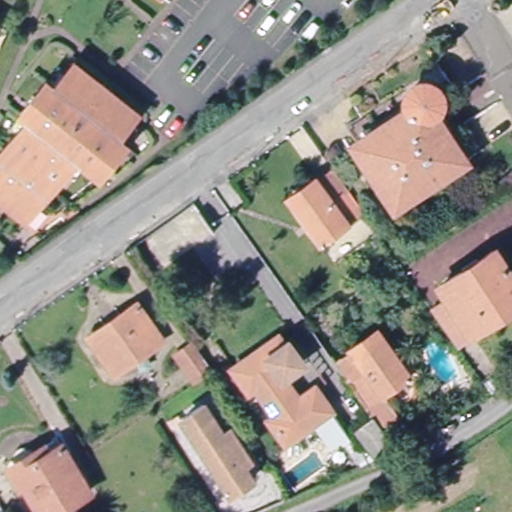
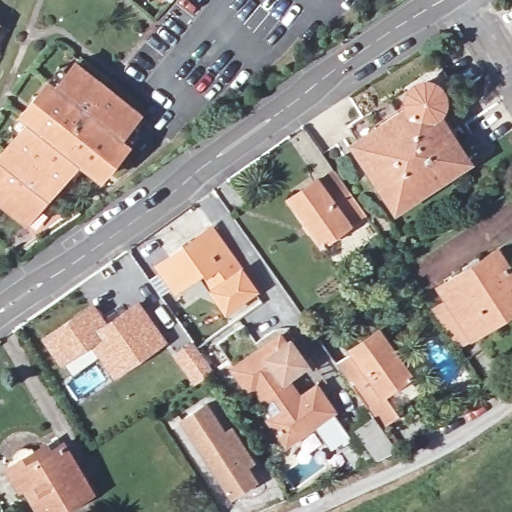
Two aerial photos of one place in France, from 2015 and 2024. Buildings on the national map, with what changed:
unchanged [(31,218),(0,194),(0,167),(23,137),(13,130),(60,69),(70,77),(79,66),(144,116),(138,125),(148,133),(109,182),(99,174),(84,163),(71,179),(65,174),(31,218)]
unchanged [(356,155),(363,151),(351,132),(364,124),(376,142),(414,118),(409,109),(409,102),(413,94),(417,90),(424,88),(436,91),(443,97),(444,105),(444,110),(442,115),(458,141),(449,146),(464,172),(401,213),(393,199),(386,203),(356,155)]
unchanged [(285,216),(279,207),(307,188),(309,192),(326,180),(358,225),(314,256),(285,216)]
new [(241,264),(259,290),(224,313),(208,290),(199,279),(175,296),(154,267),(211,225),(241,264)]
unchanged [(454,303),(446,291),(498,258),(512,281),(512,317),(479,338),(481,340),(460,354),(458,351),(434,317),(454,303)]
new [(108,329),(89,343),(90,345),(60,367),(40,338),(93,302),(108,329)]
unchanged [(89,343),(134,311),(159,347),(113,379),(89,343)]
unchanged [(363,409),(348,386),(331,362),(348,352),(377,333),(380,338),(408,380),(363,409)]
unchanged [(299,368),(279,382),(296,406),(313,395),(327,415),(279,447),(265,427),(272,423),(250,393),(244,397),(229,376),(260,355),(277,343),(281,350),(285,347),(299,368)]
unchanged [(196,385),(175,356),(193,344),(214,374),(205,379),(196,385)]
unchanged [(374,461),(354,431),(371,420),(394,453),(374,461)]
unchanged [(227,497),(187,434),(207,421),(222,444),(229,440),(245,465),(238,469),(248,484),(227,497)]
unchanged [(36,456),(39,462),(62,450),(88,496),(59,512),(37,512),(23,486),(19,488),(13,476),(16,474),(13,469),(36,456)]

